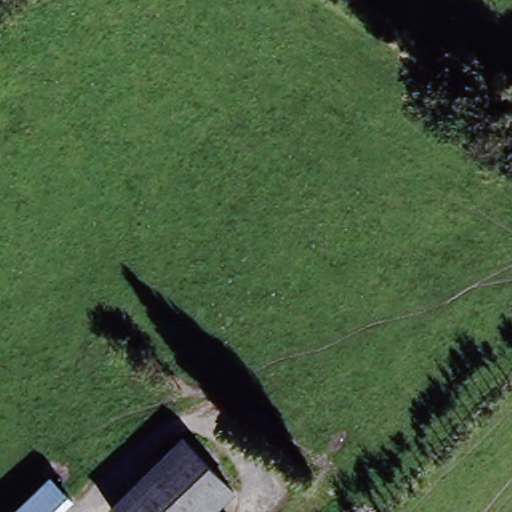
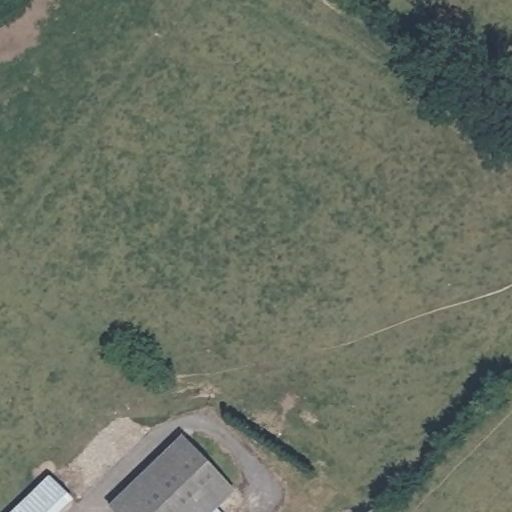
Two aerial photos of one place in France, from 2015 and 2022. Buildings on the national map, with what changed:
unchanged [(236,492),(214,512),(127,512),(196,450),(236,492)]
unchanged [(21,512),(51,485),(72,508),(67,512),(21,512)]

